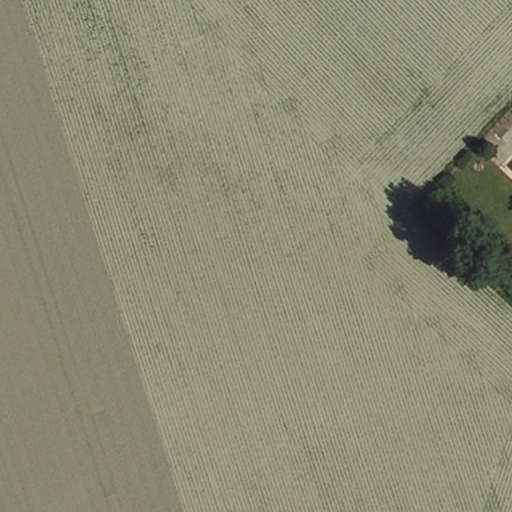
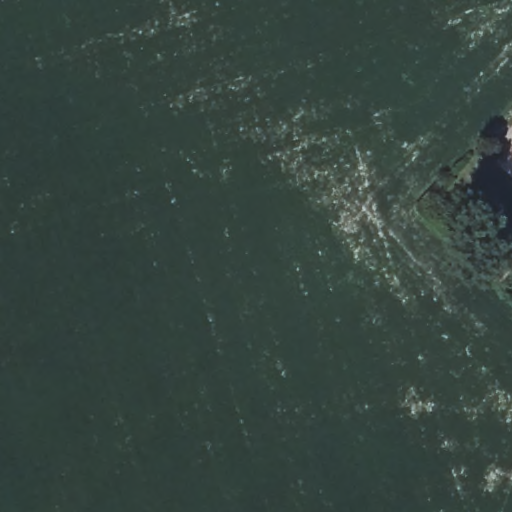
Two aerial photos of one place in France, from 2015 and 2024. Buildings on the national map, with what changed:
unchanged [(511,159),(512,157),(512,159),(511,159)]

